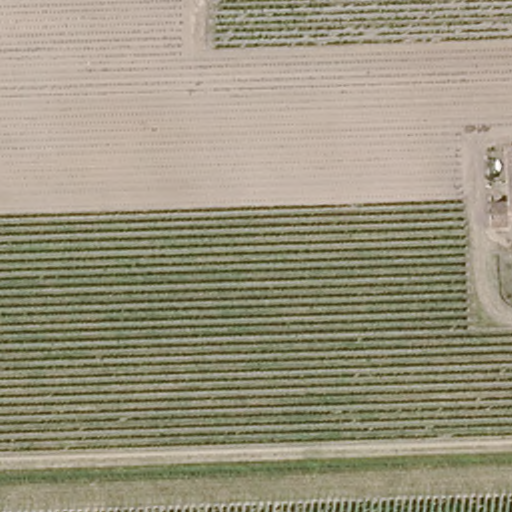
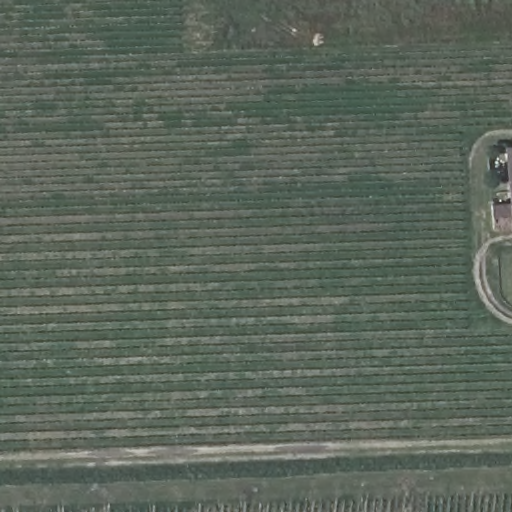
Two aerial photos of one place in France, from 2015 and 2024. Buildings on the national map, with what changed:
unchanged [(512,230),(488,231),(489,208),(511,207),(512,179),(512,230)]

